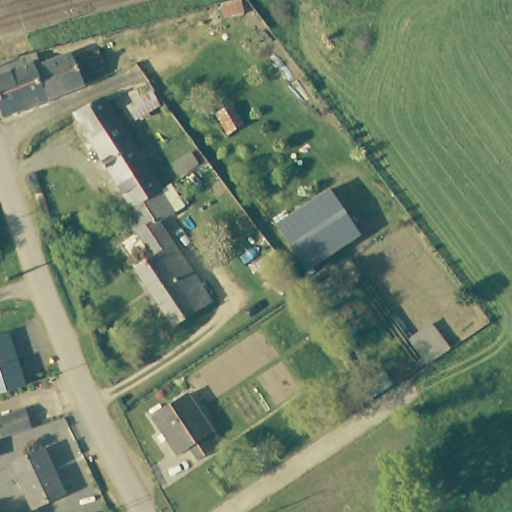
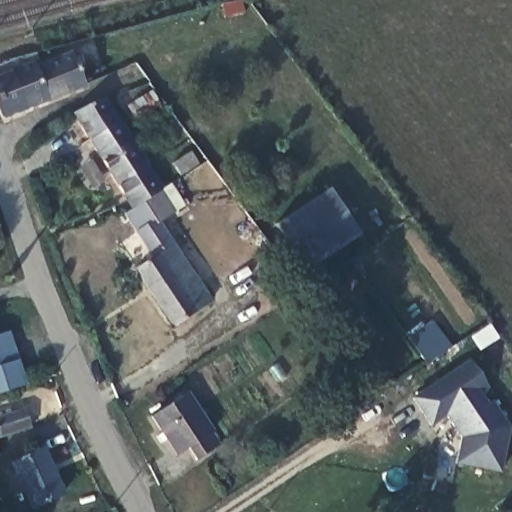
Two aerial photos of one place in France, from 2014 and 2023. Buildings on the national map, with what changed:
unchanged [(36,50),(40,65),(71,53),(84,85),(23,110),(1,118),(0,115),(0,63),(5,62),(3,59),(36,50)]
unchanged [(108,97),(111,101),(125,122),(95,141),(76,114),(108,97)]
unchanged [(95,141),(125,122),(168,190),(148,203),(159,219),(143,230),(131,214),(139,209),(95,141)]
unchanged [(330,194),(360,239),(308,273),(277,229),(330,194)]
unchanged [(169,252),(157,236),(168,228),(216,300),(178,326),(140,270),(169,252)]
unchanged [(434,318),(453,345),(433,358),(413,332),(434,318)]
unchanged [(25,385),(0,393),(0,335),(9,332),(25,385)]
new [(470,359),(491,390),(489,392),(512,428),(503,475),(455,466),(460,437),(448,417),(432,428),(411,398),(470,359)]
unchanged [(187,396),(219,446),(196,461),(188,448),(176,456),(153,418),(187,396)]
unchanged [(30,405),(36,424),(29,427),(0,436),(0,416),(22,408),(30,405)]
unchanged [(45,447),(66,492),(36,505),(15,460),(45,447)]
unchanged [(0,451),(0,449),(1,451),(0,451)]

